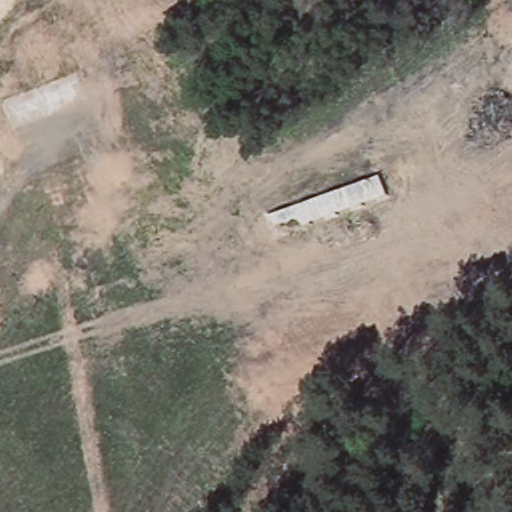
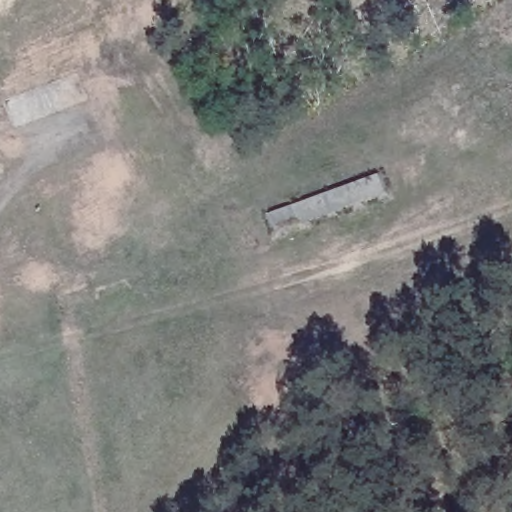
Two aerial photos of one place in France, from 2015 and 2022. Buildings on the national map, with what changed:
unchanged [(380,174),(386,187),(329,209),(326,194),(380,174)]

